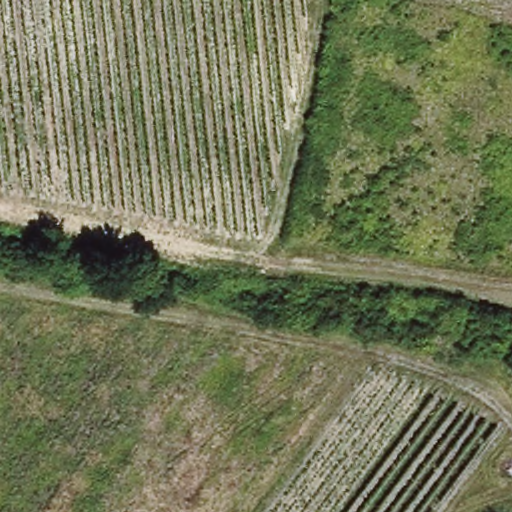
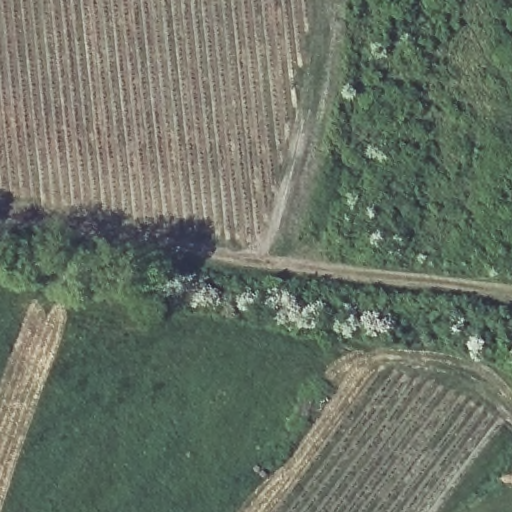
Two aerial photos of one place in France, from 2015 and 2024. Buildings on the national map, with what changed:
[]

